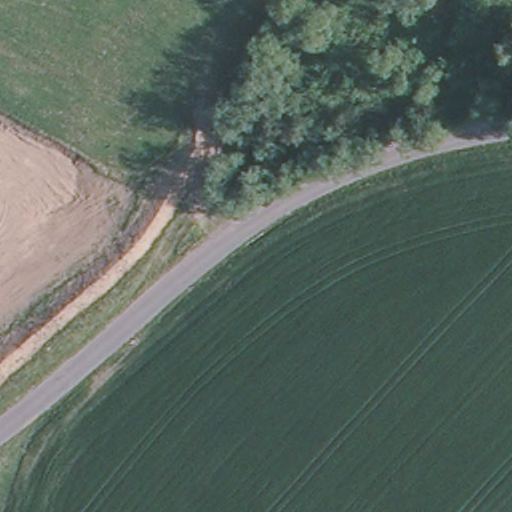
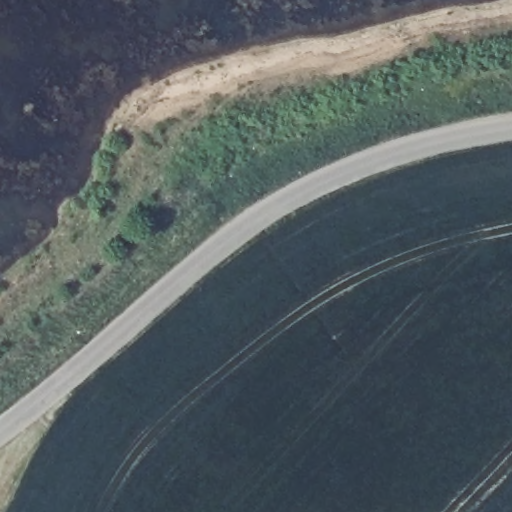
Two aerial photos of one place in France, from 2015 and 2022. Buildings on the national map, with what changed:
unchanged [(408,43),(392,38),(402,15),(421,27),(408,43)]

